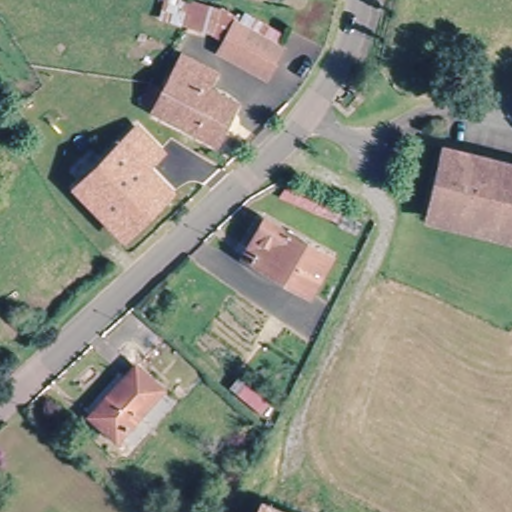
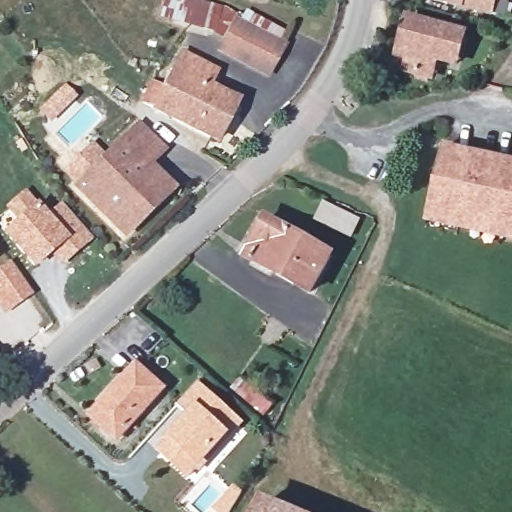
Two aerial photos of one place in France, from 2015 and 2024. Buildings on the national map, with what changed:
unchanged [(192,0),(221,8),(213,37),(168,21),(176,0),(192,0)]
new [(498,0),(493,16),(432,0),(498,0)]
new [(390,71),(406,15),(469,31),(459,70),(439,66),(434,85),(390,71)]
unchanged [(239,26),(260,36),(289,50),(288,51),(276,76),(226,53),(239,26)]
unchanged [(176,94),(198,58),(229,76),(221,89),(252,108),(228,148),(155,104),(165,87),(176,94)]
unchanged [(151,173),(173,199),(125,242),(85,197),(82,194),(102,175),(146,135),(167,159),(151,173)]
unchanged [(488,170),(512,178),(512,241),(503,238),(476,229),(461,224),(431,213),(453,151),(491,163),(488,170)]
new [(37,205),(47,215),(60,204),(93,241),(63,269),(52,256),(35,272),(2,233),(20,220),(5,209),(25,193),(37,205)]
unchanged [(330,255),(314,289),(248,261),(251,254),(243,250),(259,223),(330,255)]
new [(5,254),(34,292),(4,314),(0,308),(0,257),(5,254)]
unchanged [(132,371),(159,394),(117,445),(88,420),(132,371)]
new [(241,377),(274,404),(264,416),(232,389),(241,377)]
new [(186,412),(177,404),(199,380),(245,422),(190,479),(155,447),(186,412)]
unchanged [(214,487),(233,464),(242,472),(223,495),(214,487)]
unchanged [(315,505),(312,512),(266,512),(261,510),(269,488),(315,505)]
unchanged [(261,510),(266,512),(260,512),(261,510)]

